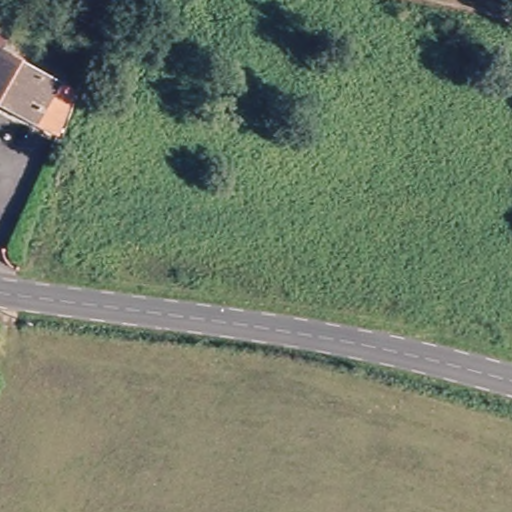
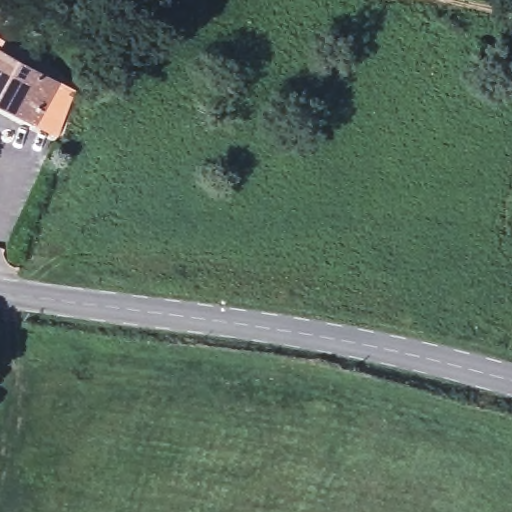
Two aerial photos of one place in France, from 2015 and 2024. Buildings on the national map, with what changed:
unchanged [(7,40),(2,47),(0,51),(0,36),(7,40)]
unchanged [(34,118),(0,96),(0,51),(2,47),(55,81),(54,84),(70,95),(57,133),(34,118)]

